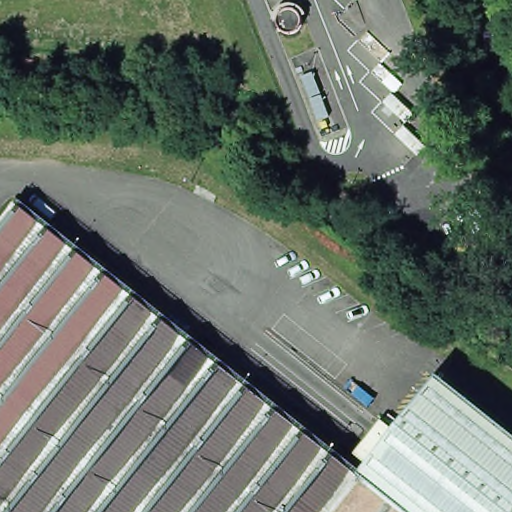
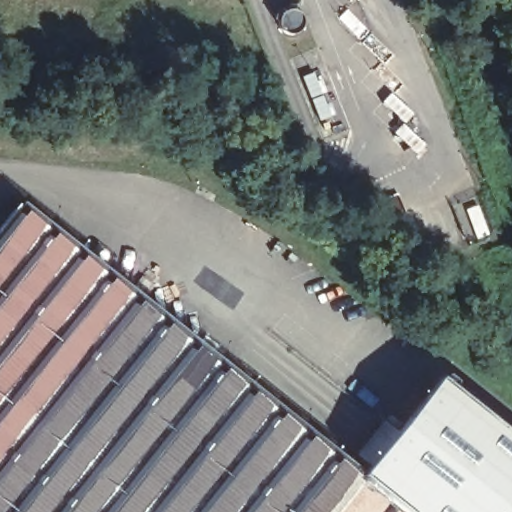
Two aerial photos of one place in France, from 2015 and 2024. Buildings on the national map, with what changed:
unchanged [(281,15),(282,14),(283,14),(284,13),(284,12),(285,12),(286,11),(287,11),(287,10),(288,10),(289,10),(290,10),(291,10),(292,10),(293,10),(294,10),(295,10),(296,11),(297,11),(298,12),(298,13),(299,13),(300,14),(301,14),(302,15),(302,16),(303,17),(303,18),(303,19),(304,20),(304,21),(304,22),(304,24),(304,25),(303,26),(303,27),(303,28),(302,29),(301,30),(301,31),(300,31),(300,33),(299,33),(298,34),(297,34),(296,34),(295,35),(294,35),(293,35),(292,35),(291,35),(290,35),(289,35),(288,35),(287,35),(286,34),(285,34),(284,33),(283,33),(283,32),(282,31),(281,30),(280,29),(280,28),(279,27),(279,26),(279,25),(279,24),(279,22),(279,21),(279,20),(279,19),(280,18),(280,16),(281,16),(281,15)]
unchanged [(16,204),(357,482),(333,512),(0,512),(0,224),(16,204)]
unchanged [(434,381),(512,442),(512,512),(400,512),(359,479),(355,478),(434,381)]
unchanged [(400,512),(333,512),(357,482),(359,479),(400,512)]

